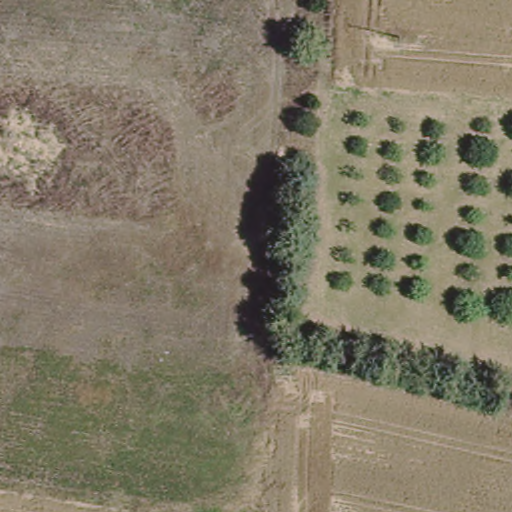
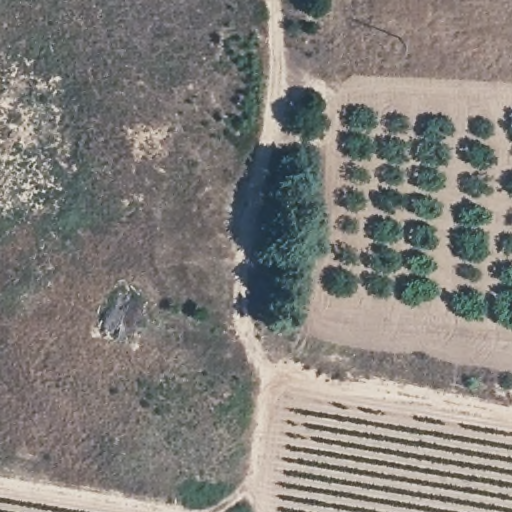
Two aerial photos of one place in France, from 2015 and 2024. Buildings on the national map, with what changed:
unchanged [(17,141),(15,153),(4,151),(5,139),(17,141)]

